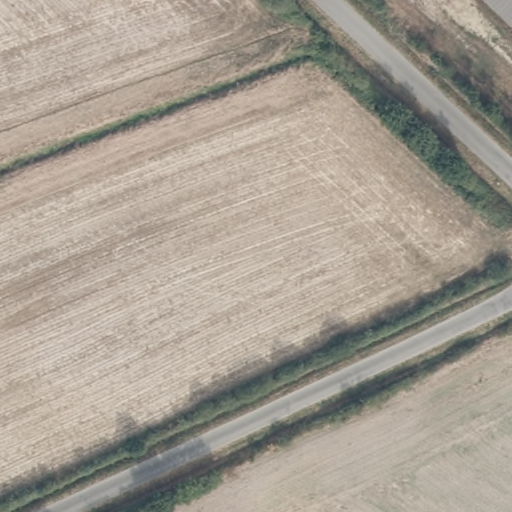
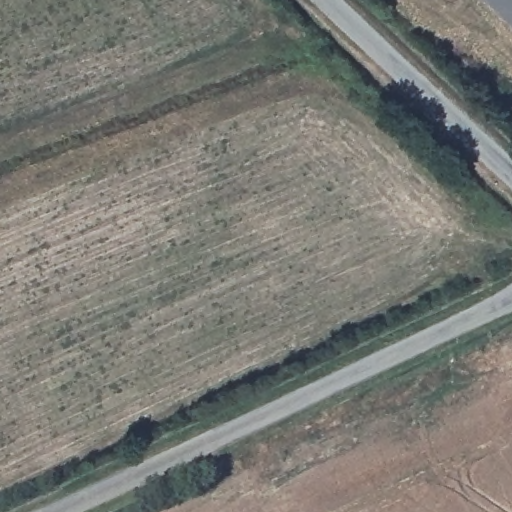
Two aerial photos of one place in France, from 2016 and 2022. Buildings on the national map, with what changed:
unchanged [(489,0),(512,0),(512,22),(489,0)]

